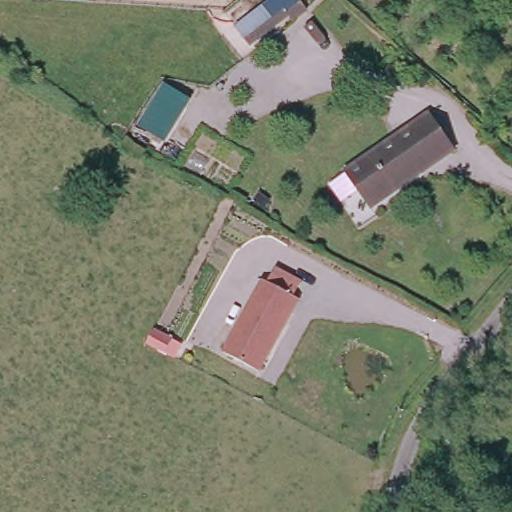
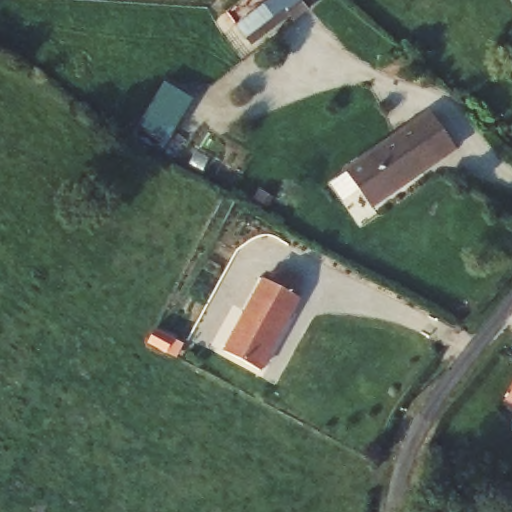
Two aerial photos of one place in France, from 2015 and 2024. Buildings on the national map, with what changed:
unchanged [(308,8),(293,20),(284,8),(244,36),(235,23),(268,0),(301,0),(308,8)]
unchanged [(193,98),(167,141),(143,127),(170,84),(193,98)]
unchanged [(448,146),(360,200),(337,163),(425,108),(448,146)]
unchanged [(274,266),(304,278),(300,299),(260,372),(224,356),(262,281),(274,266)]
new [(502,403),(512,391),(512,410),(502,403)]

